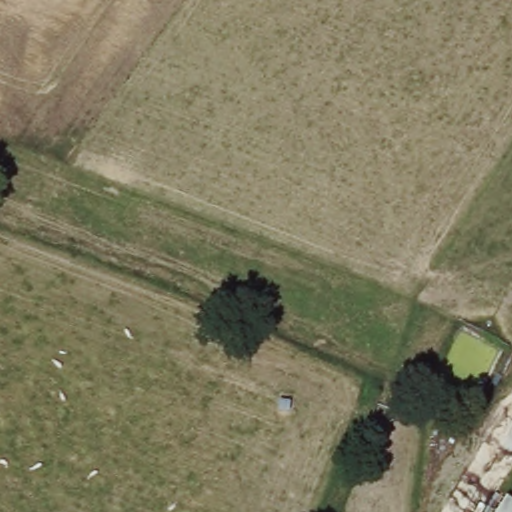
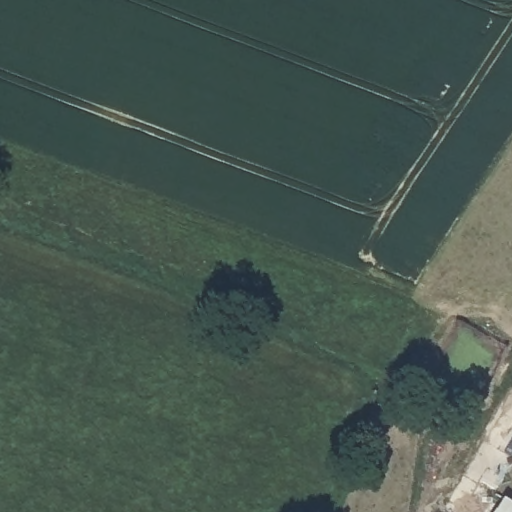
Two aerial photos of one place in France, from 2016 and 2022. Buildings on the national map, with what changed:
unchanged [(512,502),(512,512),(503,512),(510,501),(512,502)]

